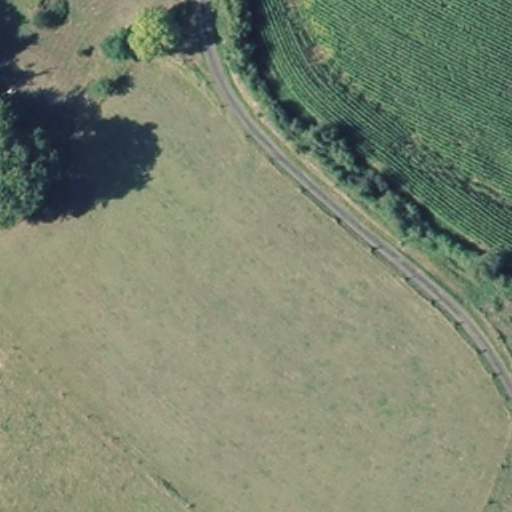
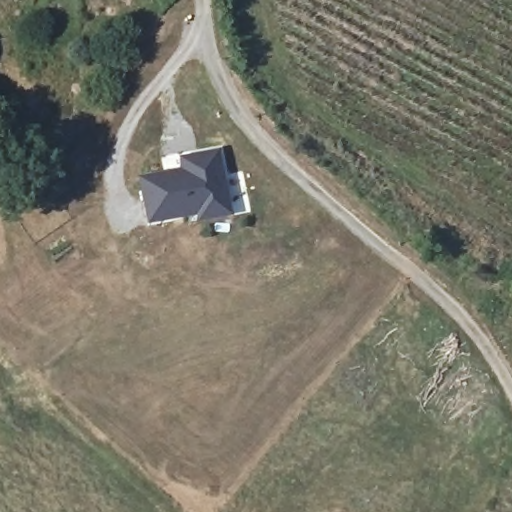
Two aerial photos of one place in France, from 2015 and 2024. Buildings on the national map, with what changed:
new [(138,179),(181,171),(179,158),(219,150),(232,217),(197,224),(197,218),(147,227),(138,179)]

